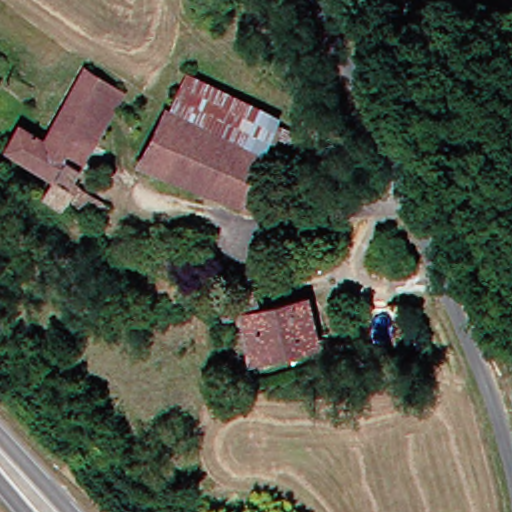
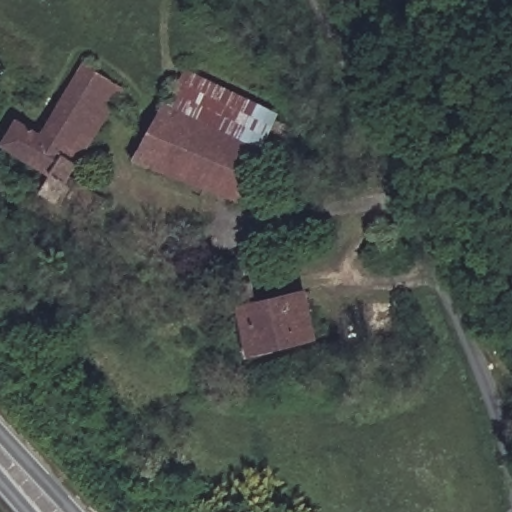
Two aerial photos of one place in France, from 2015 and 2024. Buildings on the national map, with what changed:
unchanged [(121,86),(102,118),(104,119),(69,175),(107,199),(97,215),(67,194),(61,204),(42,192),(52,173),(2,143),(17,118),(42,132),(82,62),(121,86)]
unchanged [(193,181),(132,158),(160,105),(164,106),(179,78),(268,121),(283,128),(269,158),(255,151),(234,197),(193,181)]
unchanged [(314,341),(250,355),(240,312),(222,318),(217,293),(252,286),(257,308),(304,297),(314,341)]

